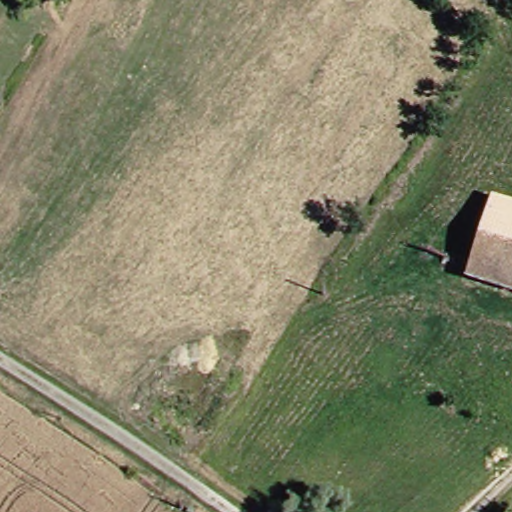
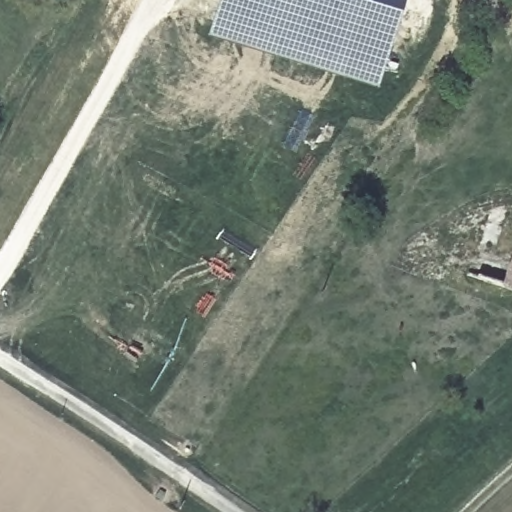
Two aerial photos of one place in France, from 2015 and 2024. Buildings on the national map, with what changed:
new [(395,0),(410,4),(387,86),(219,38),(230,0),(395,0)]
unchanged [(495,203),(512,208),(512,292),(473,282),(495,203)]

